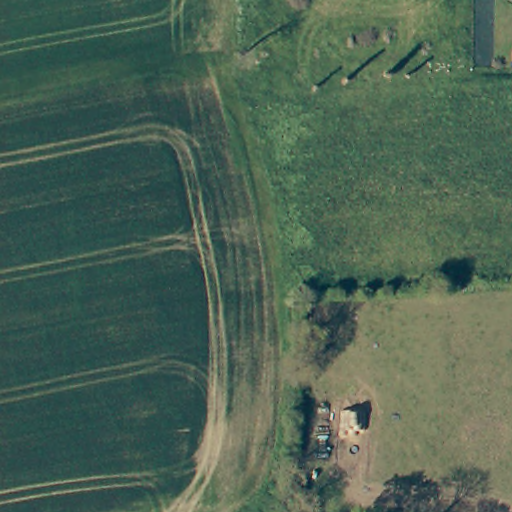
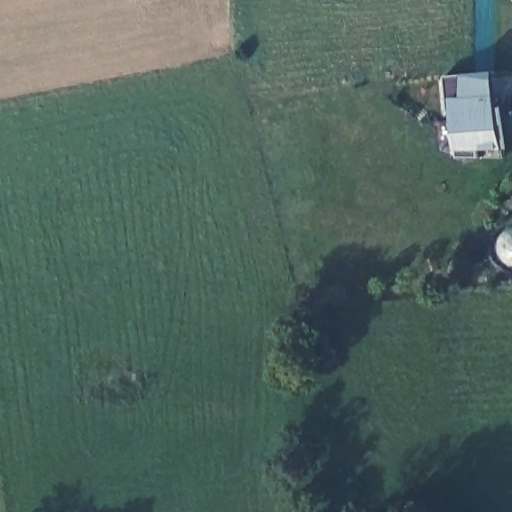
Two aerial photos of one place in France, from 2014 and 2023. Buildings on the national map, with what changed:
new [(480,151),(480,159),(458,158),(453,112),(447,113),(444,78),(494,71),(505,151),(480,151)]

